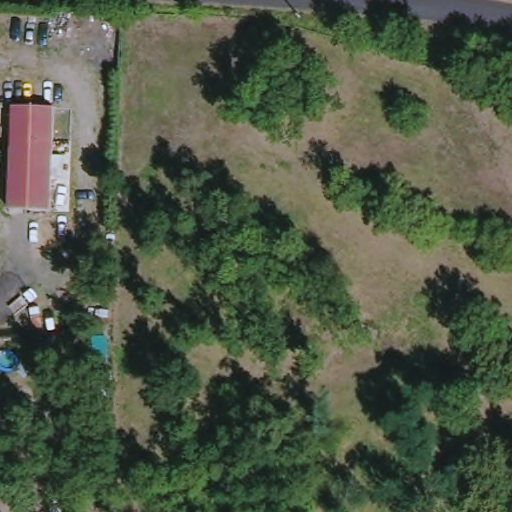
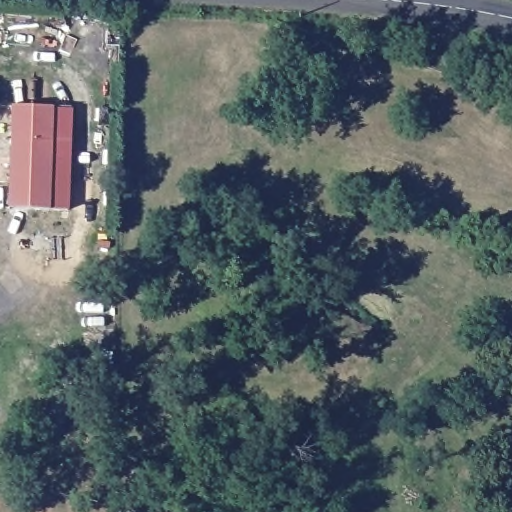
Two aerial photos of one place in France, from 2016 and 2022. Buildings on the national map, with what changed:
unchanged [(54,209),(14,207),(19,104),(60,106),(54,209)]

